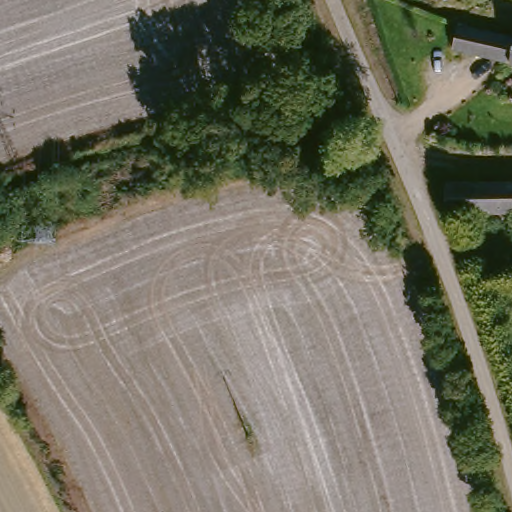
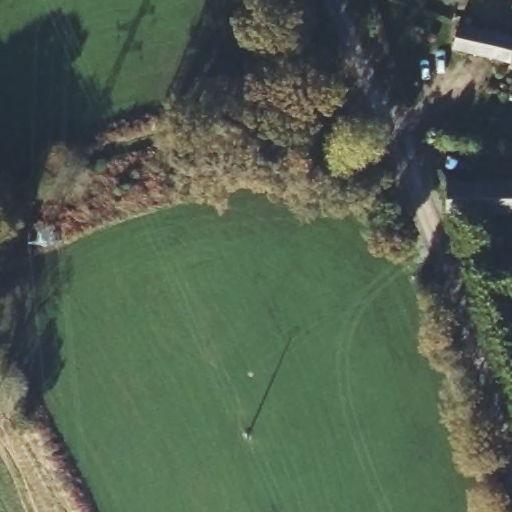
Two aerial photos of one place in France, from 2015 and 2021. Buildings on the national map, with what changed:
unchanged [(511,41),(512,39),(512,71),(449,58),(454,28),(511,41)]
unchanged [(451,226),(451,192),(512,191),(512,225),(451,226)]

